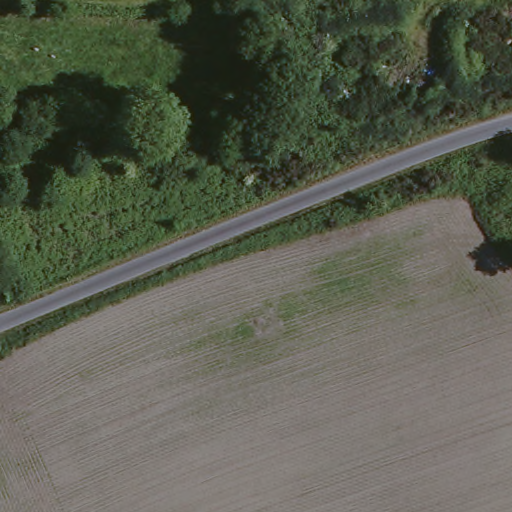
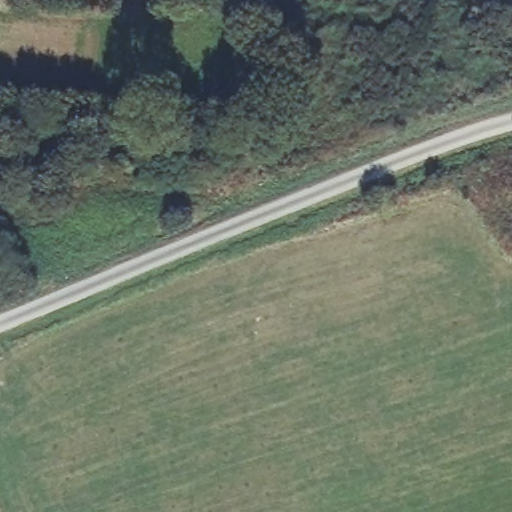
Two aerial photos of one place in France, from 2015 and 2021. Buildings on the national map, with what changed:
[]

